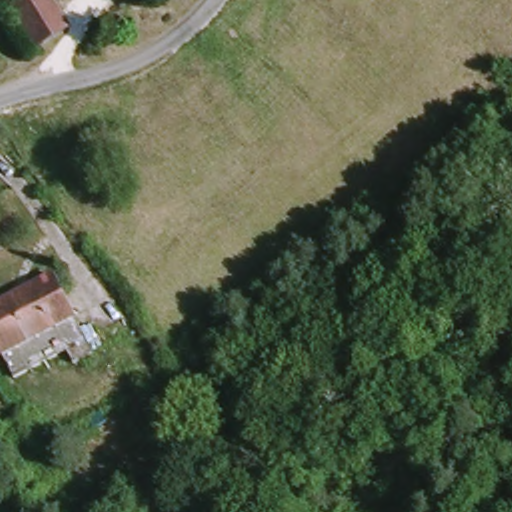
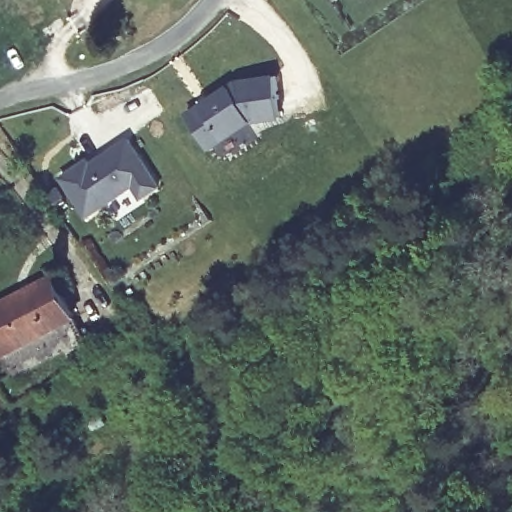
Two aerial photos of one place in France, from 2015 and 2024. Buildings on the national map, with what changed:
demolished [(81,25),(47,44),(22,0),(67,0),(81,25)]
new [(239,80),(277,75),(283,115),(254,120),(212,148),(189,114),(239,80)]
new [(88,159),(90,163),(128,137),(160,185),(143,196),(135,184),(88,215),(61,176),(88,159)]
unchanged [(99,347),(87,353),(81,345),(28,373),(0,324),(0,306),(57,275),(99,347)]

